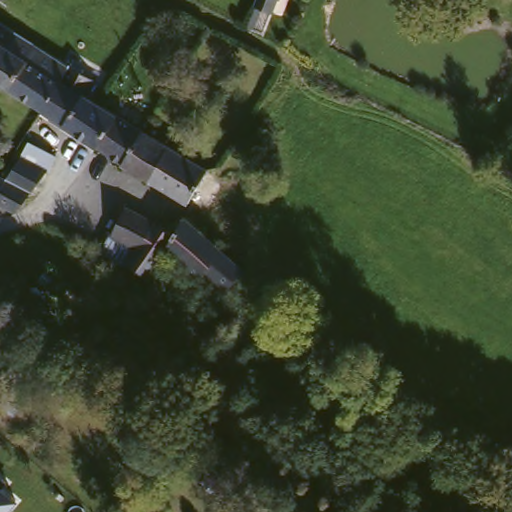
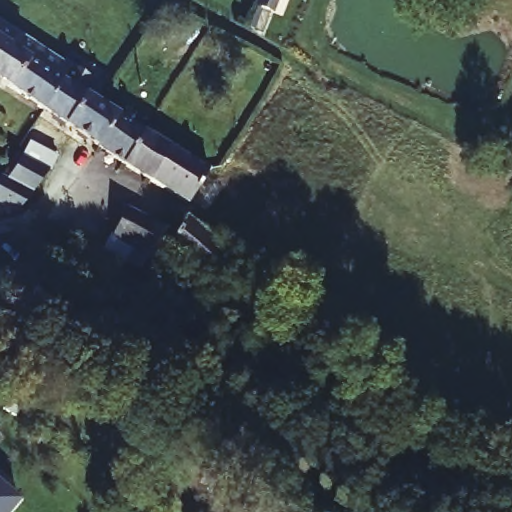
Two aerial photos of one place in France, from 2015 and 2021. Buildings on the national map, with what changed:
unchanged [(253,0),(275,0),(271,8),(252,2),(253,0)]
unchanged [(2,83),(0,81),(0,22),(30,41),(2,83)]
unchanged [(65,64),(37,106),(2,83),(30,41),(65,64)]
unchanged [(113,107),(113,108),(106,119),(91,141),(37,106),(65,64),(79,73),(90,80),(85,89),(90,92),(113,107)]
unchanged [(91,141),(106,119),(113,108),(113,107),(143,127),(139,134),(121,161),(91,141)]
unchanged [(166,152),(148,179),(121,161),(139,134),(143,127),(151,132),(170,145),(166,152)]
unchanged [(203,168),(185,196),(184,200),(148,179),(166,152),(170,145),(204,167),(203,168)]
unchanged [(0,170),(4,173),(22,149),(47,169),(29,192),(13,212),(0,202),(0,170)]
unchanged [(131,203),(175,233),(167,241),(173,246),(149,279),(102,251),(131,203)]
unchanged [(175,233),(191,214),(249,269),(225,293),(173,246),(167,241),(175,233)]
unchanged [(58,271),(50,283),(36,273),(45,261),(58,271)]
unchanged [(4,486),(19,500),(8,512),(0,512),(0,470),(10,478),(4,486)]

